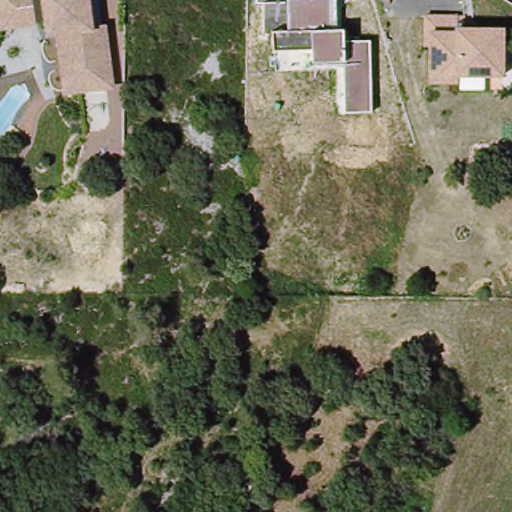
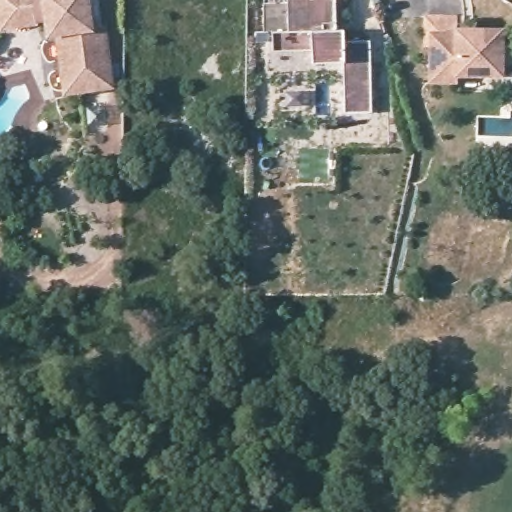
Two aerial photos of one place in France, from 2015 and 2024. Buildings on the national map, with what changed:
unchanged [(91,30),(107,30),(113,94),(63,98),(55,40),(46,39),(42,25),(0,32),(0,0),(88,0),(91,30)]
unchanged [(336,44),(367,42),(370,112),(341,115),(339,65),(309,65),(309,52),(270,55),(267,32),(286,31),(286,0),(334,0),(336,44)]
unchanged [(504,29),(504,77),(459,77),(455,84),(427,85),(426,32),(504,29)]

